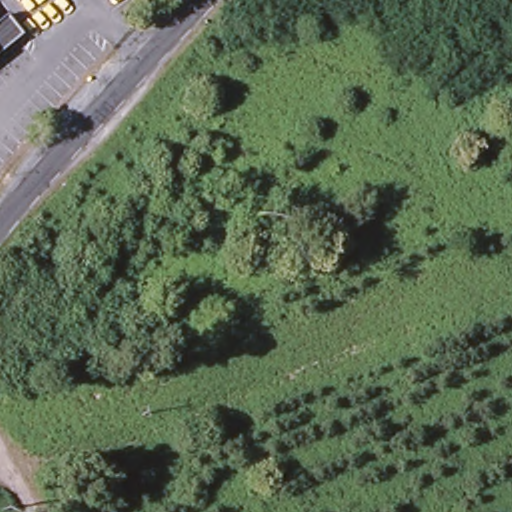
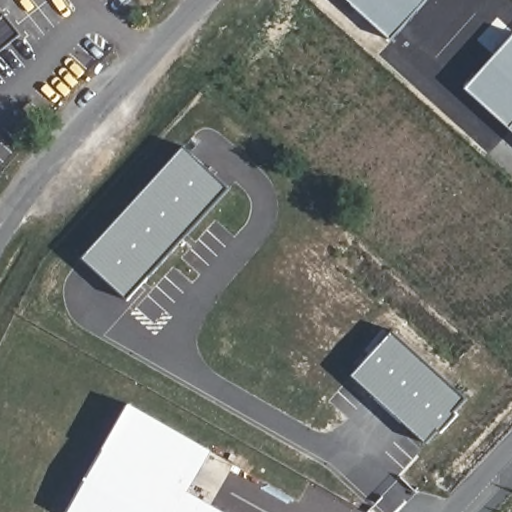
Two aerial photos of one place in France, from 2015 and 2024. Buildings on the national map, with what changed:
new [(348,0),(430,0),(393,40),(348,0)]
unchanged [(0,42),(0,11),(15,27),(0,42)]
new [(512,130),(467,88),(512,37),(512,129),(512,130)]
new [(184,146),(230,188),(130,300),(83,259),(184,146)]
new [(429,442),(354,377),(392,333),(468,398),(429,442)]
new [(184,432),(160,476),(187,491),(224,512),(79,512),(71,507),(131,402),(184,432)]
new [(184,432),(211,447),(187,491),(160,476),(184,432)]

